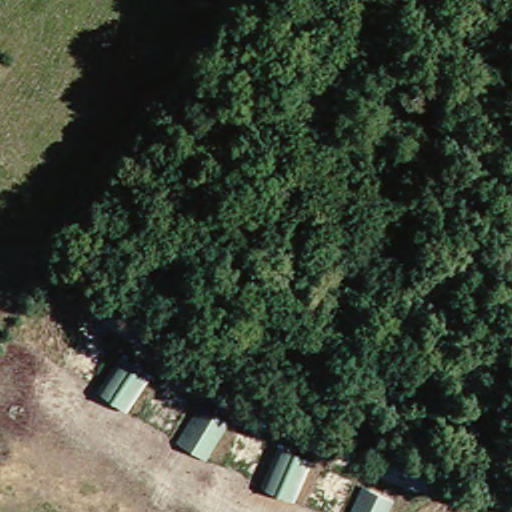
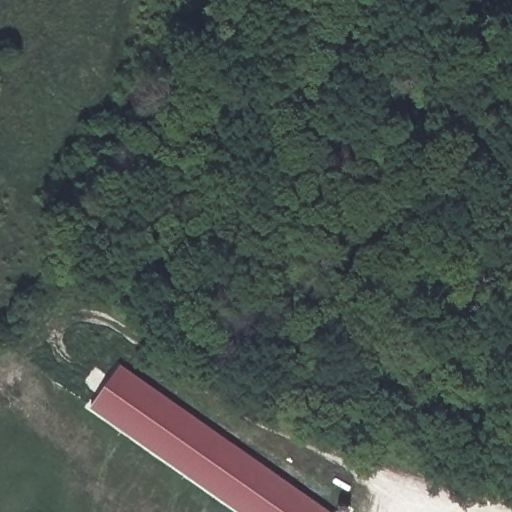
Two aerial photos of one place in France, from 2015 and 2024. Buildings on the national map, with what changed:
demolished [(110,332),(86,369),(55,350),(77,314),(110,332)]
new [(119,365),(330,512),(239,512),(91,407),(119,365)]
demolished [(191,402),(168,441),(137,422),(160,384),(191,402)]
demolished [(270,443),(254,486),(218,473),(233,432),(270,443)]
demolished [(348,512),(309,512),(321,474),(357,486),(348,512)]

